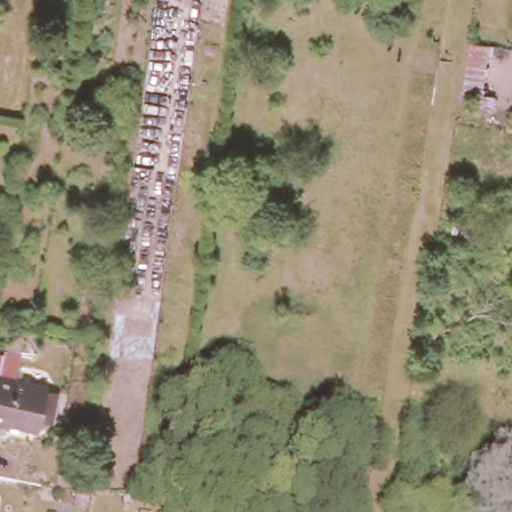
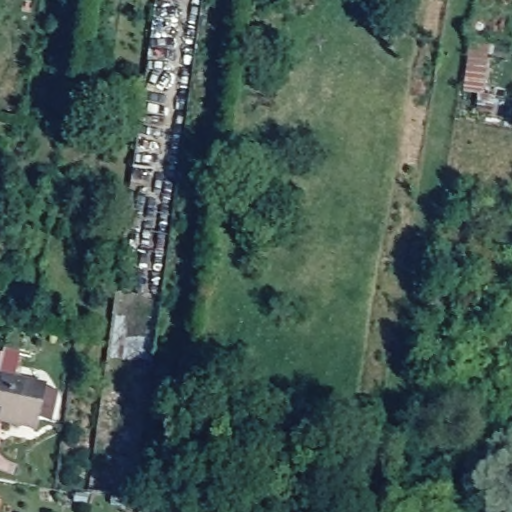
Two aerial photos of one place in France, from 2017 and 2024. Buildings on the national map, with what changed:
unchanged [(485,90),(462,90),(465,41),(489,44),(485,90)]
unchanged [(42,423),(39,433),(0,424),(0,357),(5,358),(12,329),(27,332),(17,381),(50,389),(49,392),(60,395),(52,425),(42,423)]

